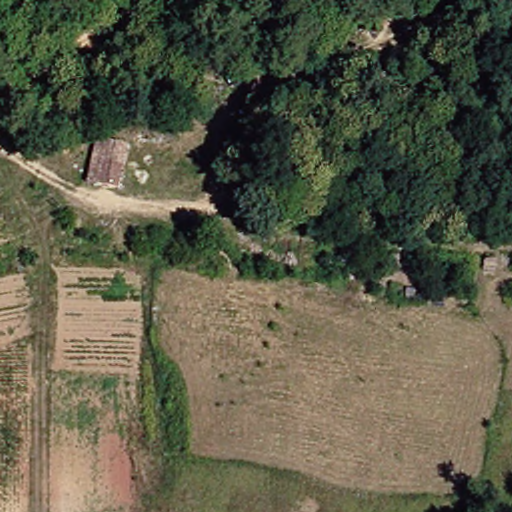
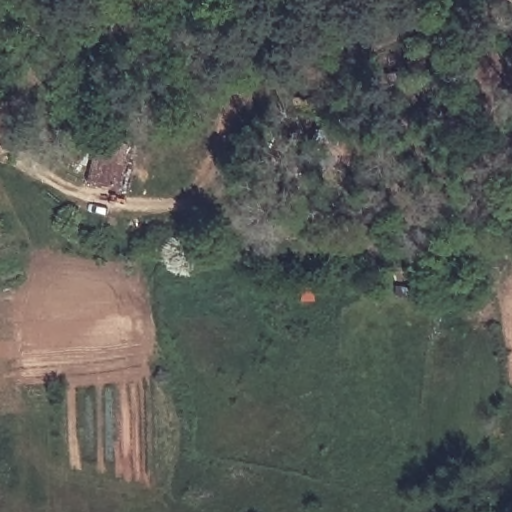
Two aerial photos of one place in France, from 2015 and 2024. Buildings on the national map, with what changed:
unchanged [(94,174),(103,175),(104,158),(126,161),(123,182),(123,187),(93,184),(93,181),(94,174)]

